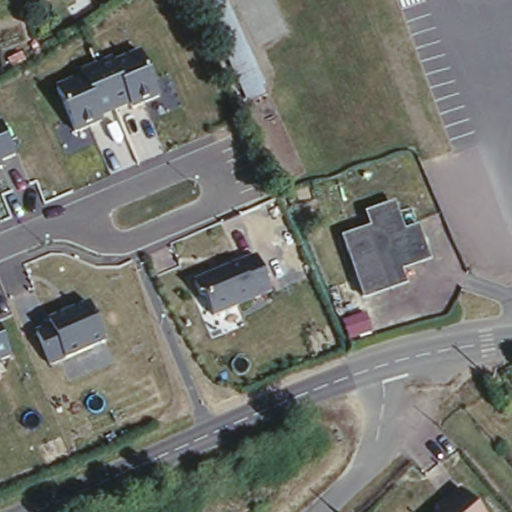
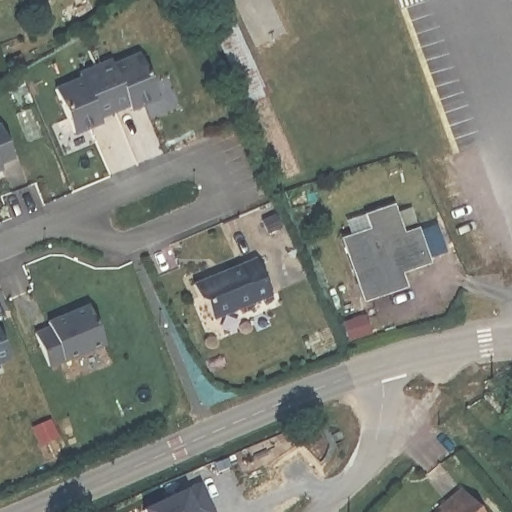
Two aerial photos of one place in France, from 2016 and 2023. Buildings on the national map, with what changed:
unchanged [(272,77),(257,85),(216,0),(235,0),(272,77)]
unchanged [(79,72),(77,68),(110,54),(113,59),(139,49),(157,95),(131,107),(128,102),(100,115),(103,121),(75,132),(56,82),(79,72)]
unchanged [(17,156),(2,162),(4,169),(0,171),(0,122),(2,121),(17,156)]
unchanged [(342,238),(369,229),(362,214),(396,202),(406,232),(421,227),(431,260),(402,272),(407,285),(365,299),(342,238)]
unchanged [(203,296),(198,298),(193,288),(257,262),(271,294),(215,317),(203,296)]
unchanged [(104,339),(51,361),(35,323),(89,302),(104,339)]
unchanged [(10,358),(0,362),(0,332),(10,358)]
new [(146,512),(144,509),(185,489),(199,482),(214,512),(146,512)]
unchanged [(447,502),(462,491),(478,512),(443,512),(450,506),(447,502)]

